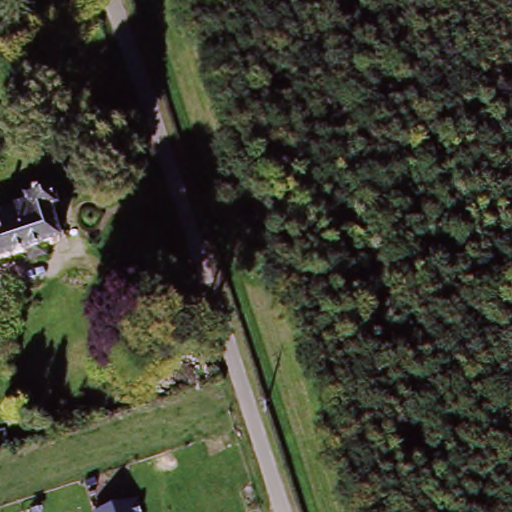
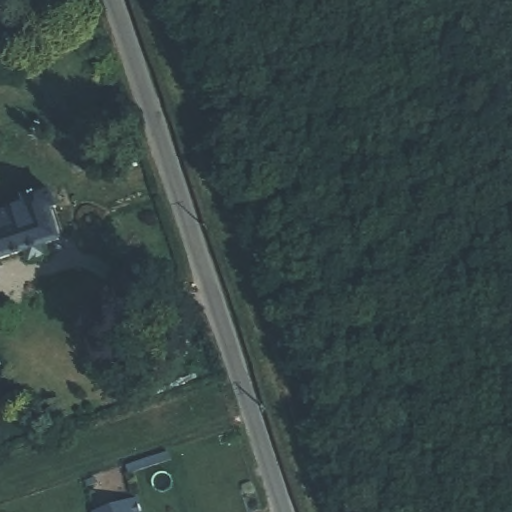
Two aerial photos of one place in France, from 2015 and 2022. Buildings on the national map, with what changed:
unchanged [(60,212),(53,214),(62,245),(0,263),(0,239),(0,219),(33,210),(31,201),(56,195),(60,212)]
unchanged [(131,501),(135,512),(95,512),(131,501)]

